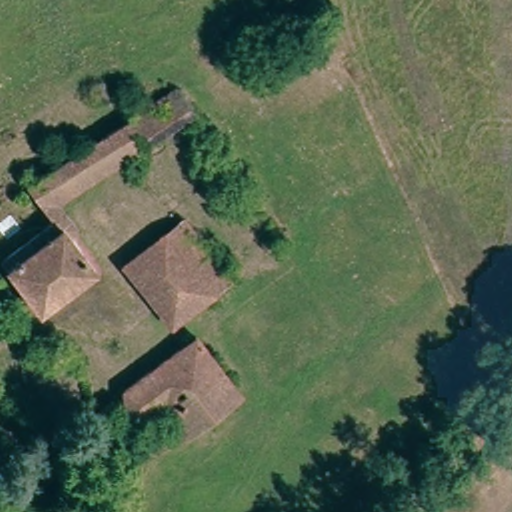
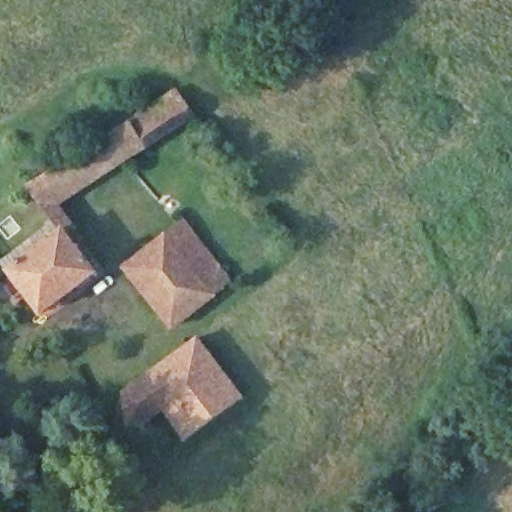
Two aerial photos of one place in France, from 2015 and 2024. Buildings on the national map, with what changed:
unchanged [(134,118),(180,89),(196,114),(64,196),(77,217),(62,227),(54,216),(42,200),(143,131),(134,118)]
unchanged [(42,200),(31,184),(134,118),(143,131),(42,200)]
unchanged [(0,287),(0,268),(4,265),(0,259),(0,253),(54,216),(62,227),(80,253),(94,273),(36,310),(20,287),(7,296),(0,287)]
unchanged [(182,315),(166,325),(124,265),(186,222),(232,284),(182,315)]
unchanged [(187,433),(166,403),(139,416),(138,414),(125,421),(119,392),(196,335),(238,395),(187,433)]

